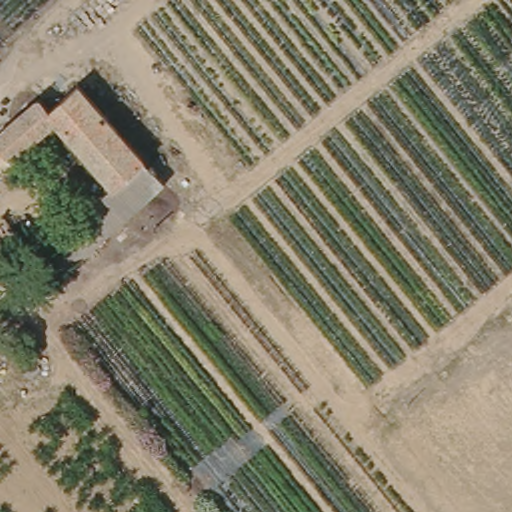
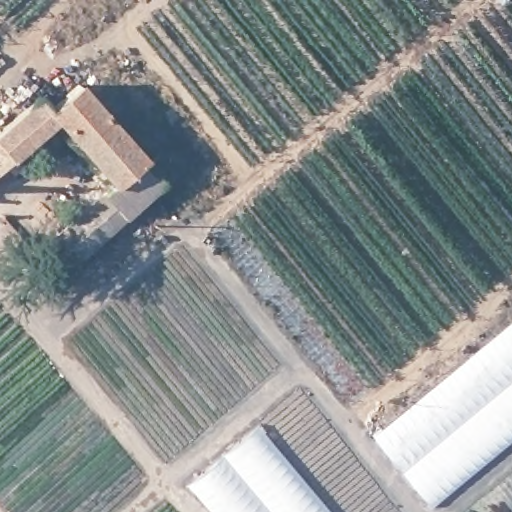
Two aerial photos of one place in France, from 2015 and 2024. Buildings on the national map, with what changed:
unchanged [(40,80),(49,89),(76,67),(165,174),(52,268),(32,241),(102,184),(46,116),(26,132),(38,146),(15,165),(4,150),(0,154),(0,113),(40,80)]
new [(512,378),(402,468),(372,431),(512,317),(512,378)]
new [(512,439),(432,505),(402,468),(512,378),(512,439)]
new [(332,512),(214,512),(190,484),(257,423),(332,512)]

